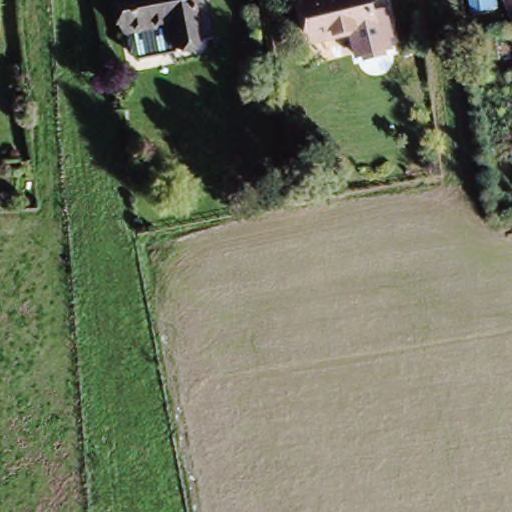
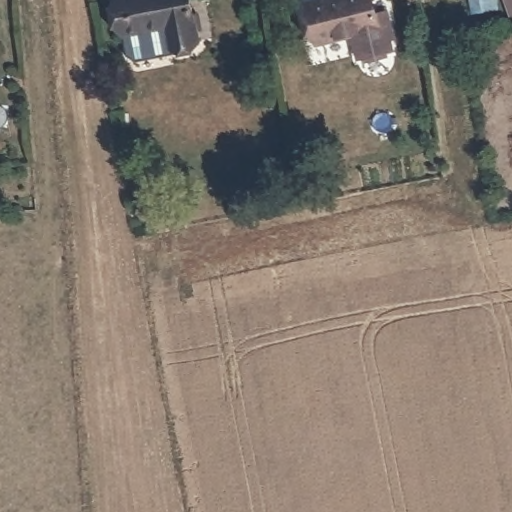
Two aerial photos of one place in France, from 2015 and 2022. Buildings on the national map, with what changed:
unchanged [(174,51),(170,33),(129,41),(121,0),(193,0),(202,45),(174,51)]
unchanged [(385,33),(322,48),(312,8),(344,0),(376,0),(385,33)]
unchanged [(495,9),(472,13),(470,0),(493,0),(495,9)]
unchanged [(504,0),(512,0),(512,19),(510,19),(504,0)]

